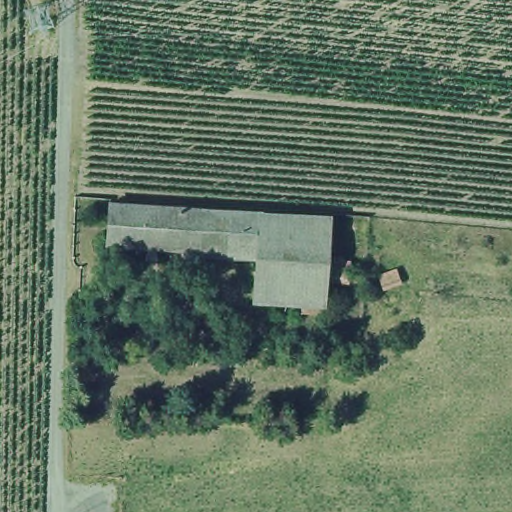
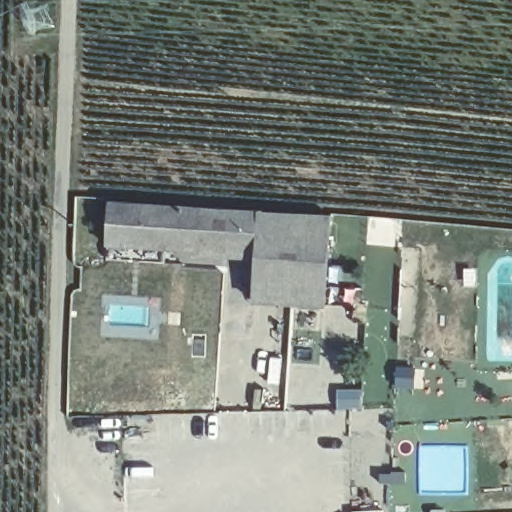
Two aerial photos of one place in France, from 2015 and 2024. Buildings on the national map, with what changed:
unchanged [(326,255),(342,259),(340,283),(322,282),(319,311),(245,307),(247,267),(99,252),(101,202),(327,214),(326,255)]

